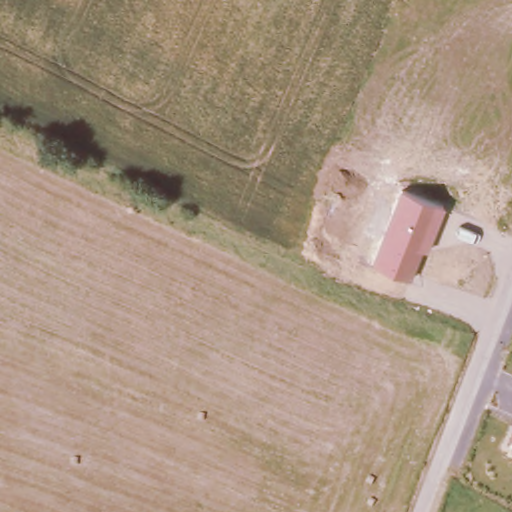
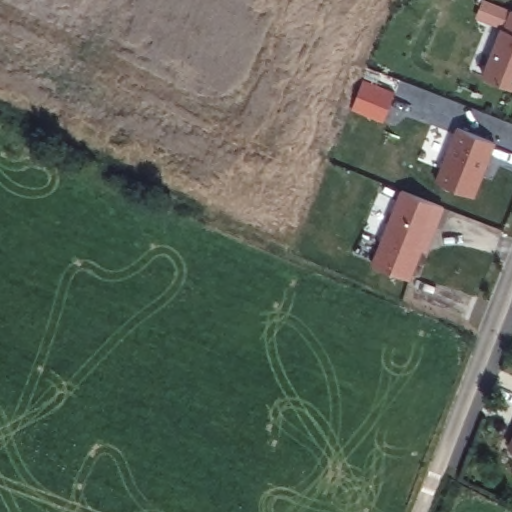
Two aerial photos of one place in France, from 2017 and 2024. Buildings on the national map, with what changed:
new [(484,79),(503,30),(476,19),(484,0),(512,11),(512,89),(484,79)]
new [(494,144),(473,199),(435,184),(457,129),(494,144)]
unchanged [(371,265),(401,190),(444,207),(427,252),(422,251),(411,281),(371,265)]
unchanged [(510,448),(512,443),(512,449),(510,448)]

